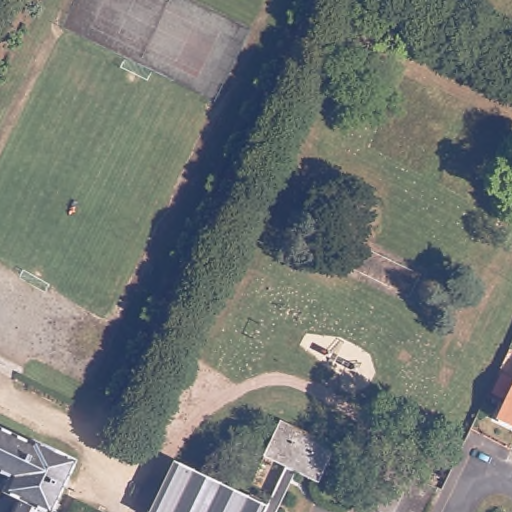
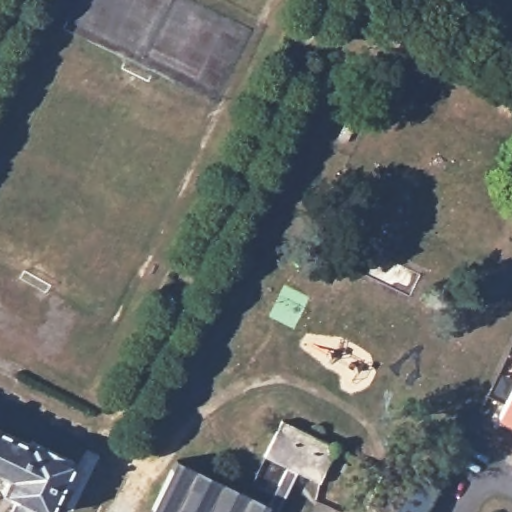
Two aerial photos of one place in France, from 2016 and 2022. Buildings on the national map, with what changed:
unchanged [(512,405),(512,425),(505,421),(512,405)]
unchanged [(155,479),(169,486),(181,462),(223,482),(273,506),(292,467),(270,456),(287,420),(341,447),(324,483),(301,472),(281,512),(153,512),(142,506),(155,479)]
unchanged [(32,444),(34,440),(76,460),(53,512),(48,512),(20,498),(6,492),(13,477),(0,471),(0,429),(32,444)]
unchanged [(394,463),(445,488),(433,512),(385,512),(372,506),(394,463)]
unchanged [(14,512),(20,498),(48,512),(14,512)]

